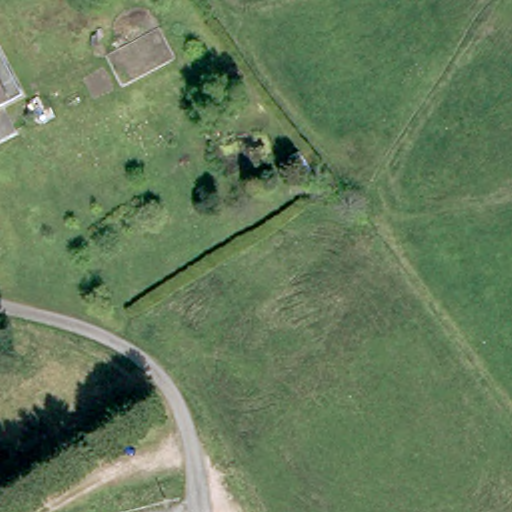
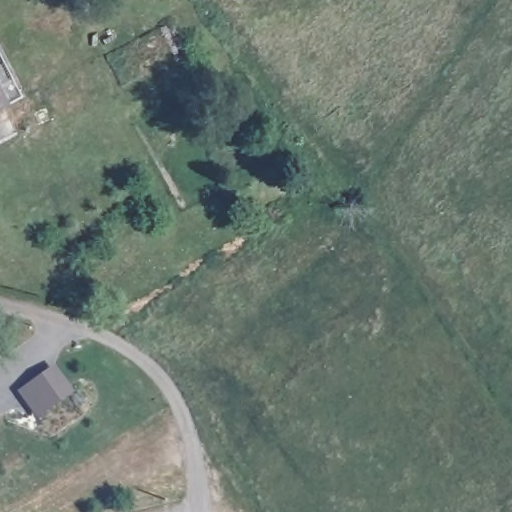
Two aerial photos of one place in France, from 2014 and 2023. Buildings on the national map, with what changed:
unchanged [(9,92),(0,96),(0,74),(9,92)]
new [(77,393),(39,420),(18,392),(57,364),(77,393)]

